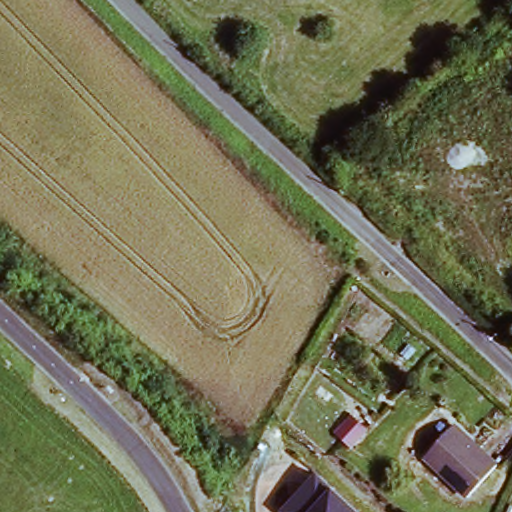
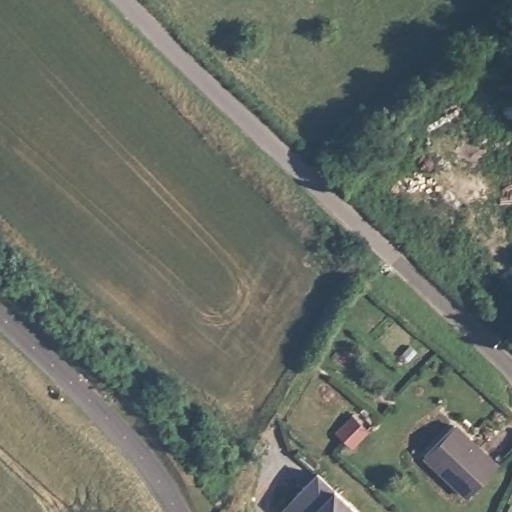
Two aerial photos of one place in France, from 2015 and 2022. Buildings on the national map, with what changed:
unchanged [(497,466),(467,494),(429,452),(458,424),(497,466)]
unchanged [(360,512),(281,512),(316,474),(360,512)]

